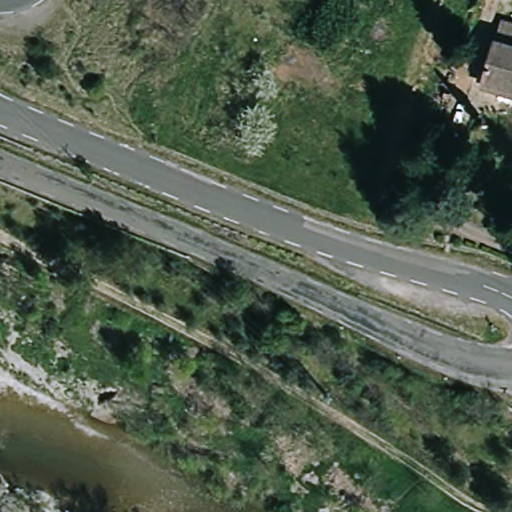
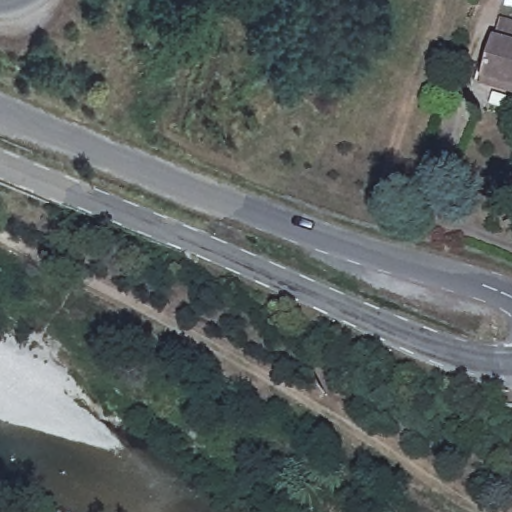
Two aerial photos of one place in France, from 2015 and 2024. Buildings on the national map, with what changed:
unchanged [(492,40),(512,44),(512,87),(482,80),(492,40)]

